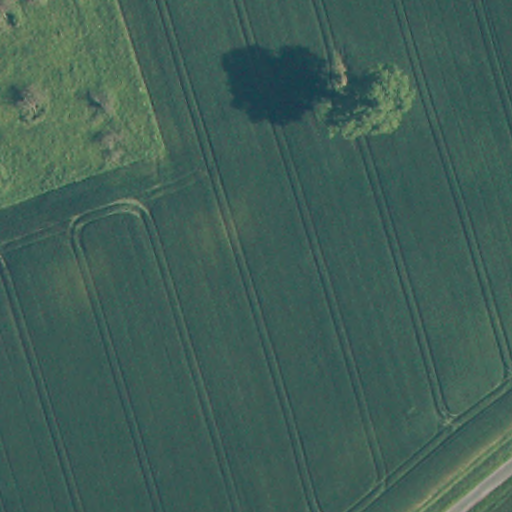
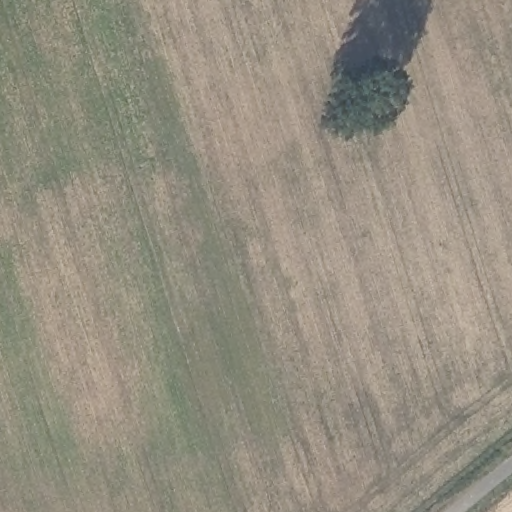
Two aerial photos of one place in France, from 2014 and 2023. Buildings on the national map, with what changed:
[]

